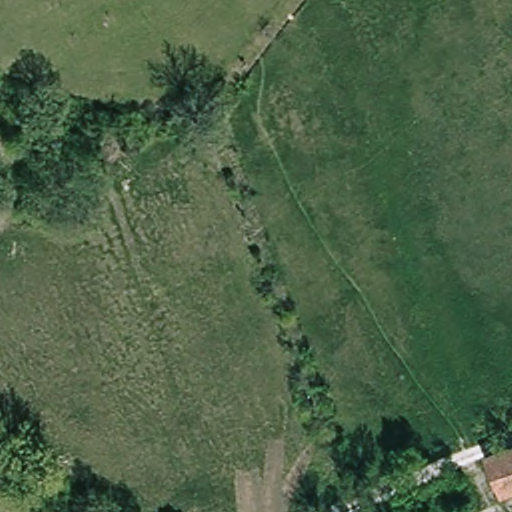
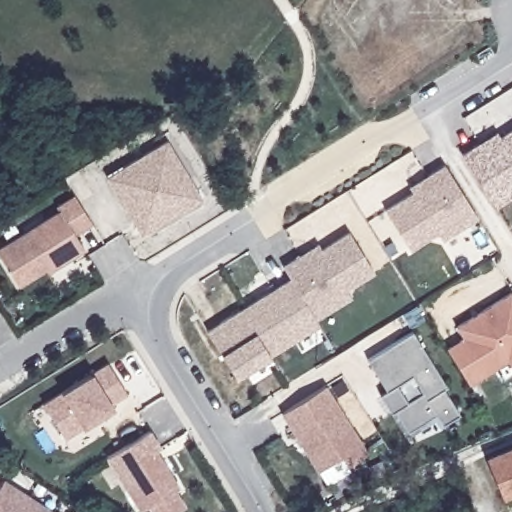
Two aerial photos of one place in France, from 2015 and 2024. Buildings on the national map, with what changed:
new [(499,135),(512,127),(512,197),(495,208),(461,153),(496,130),(499,135)]
new [(166,139),(202,198),(141,236),(105,177),(166,139)]
new [(445,164),(478,219),(443,242),(438,233),(410,251),(385,208),(411,191),(409,185),(445,164)]
new [(58,210),(55,205),(73,194),(91,224),(75,234),(85,251),(48,274),(46,270),(18,287),(0,255),(0,246),(58,210)]
new [(282,264),(318,242),(322,248),(350,231),(375,274),(349,288),(353,297),(316,320),(290,278),(282,264)]
new [(290,278),(316,320),(320,326),(270,357),(236,379),(220,352),(207,329),(290,278)]
new [(512,367),(508,362),(470,387),(446,348),(462,339),(456,326),(512,291),(512,367)]
new [(412,332),(446,388),(445,389),(460,414),(439,428),(435,420),(406,439),(390,413),(390,412),(380,394),(386,391),(366,359),(412,332)]
new [(43,403),(61,391),(92,372),(108,362),(128,393),(112,403),(115,407),(83,428),(65,438),(43,403)]
new [(325,384),(367,453),(348,466),(342,457),(317,473),(281,413),(325,384)]
new [(105,456),(148,429),(160,447),(157,450),(180,487),(175,490),(185,508),(179,512),(150,512),(147,507),(140,511),(105,456)]
unchanged [(486,458),(512,448),(512,492),(502,496),(486,458)]
new [(3,478),(57,512),(0,512),(0,483),(3,478)]

